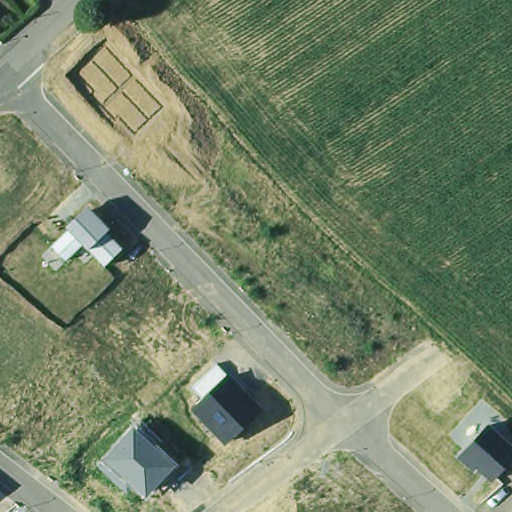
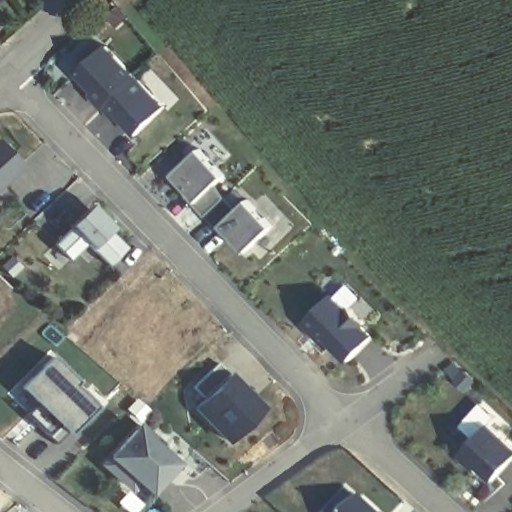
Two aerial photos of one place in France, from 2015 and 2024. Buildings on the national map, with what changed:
new [(107,45),(167,105),(137,134),(120,115),(117,118),(93,94),(96,90),(78,72),(107,45)]
new [(0,183),(0,144),(20,165),(0,183)]
new [(200,148),(225,175),(215,185),(239,209),(249,199),(275,225),(248,251),(222,225),(220,228),(195,202),(198,200),(173,174),(200,148)]
unchanged [(107,265),(84,243),(68,259),(53,244),(70,227),(67,225),(89,204),(112,226),(109,230),(125,247),(107,265)]
new [(332,295),(349,310),(352,306),(367,320),(363,324),(374,335),(351,358),(327,335),(323,338),(306,321),(332,295)]
new [(47,433),(32,418),(25,412),(37,400),(22,386),(52,356),(75,380),(72,384),(94,405),(82,417),(56,443),(47,433)]
unchanged [(227,444),(192,410),(204,397),(192,386),(217,362),(228,373),(230,371),(266,407),(227,444)]
unchanged [(494,481),(478,467),(475,470),(458,457),(489,420),(512,441),(512,462),(494,481)]
unchanged [(149,496),(135,485),(127,492),(97,466),(103,458),(135,422),(180,462),(149,496)]
new [(380,512),(347,512),(362,496),(380,512)]

